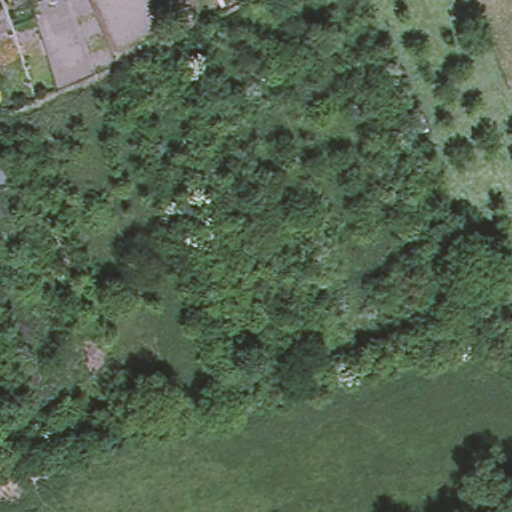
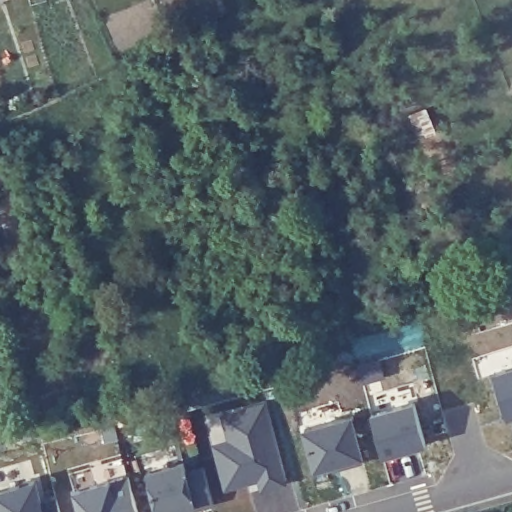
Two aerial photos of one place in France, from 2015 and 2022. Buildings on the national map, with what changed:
unchanged [(0,183),(0,141),(12,180),(0,183)]
new [(512,373),(512,423),(502,426),(493,378),(512,373)]
new [(266,406),(287,488),(258,492),(257,485),(222,492),(212,447),(226,443),(220,416),(266,406)]
new [(413,410),(424,451),(381,462),(371,420),(413,410)]
new [(352,421),(363,465),(315,477),(302,436),(352,421)]
new [(185,474),(205,468),(213,503),(185,512),(152,512),(142,474),(184,465),(185,474)]
new [(136,512),(75,512),(71,494),(127,481),(136,512)]
new [(43,512),(0,512),(0,496),(35,487),(43,512)]

